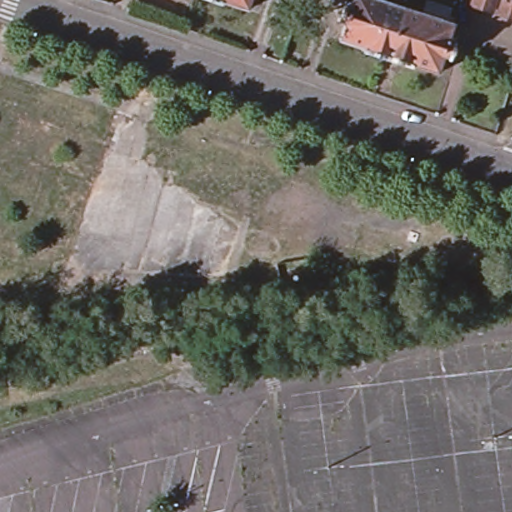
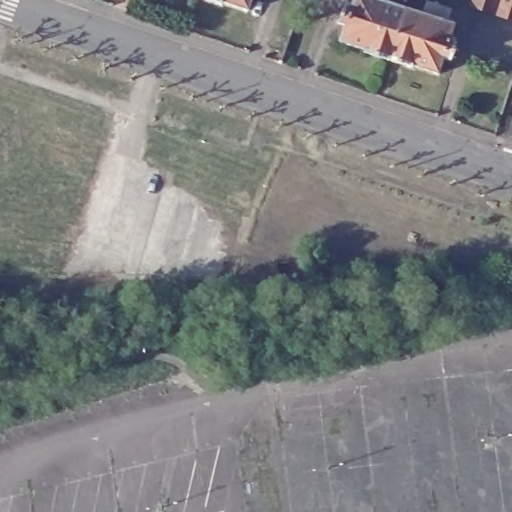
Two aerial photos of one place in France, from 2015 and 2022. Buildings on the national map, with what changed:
unchanged [(230,0),(252,0),(250,7),(230,0)]
unchanged [(368,40),(343,32),(348,15),(342,13),(346,0),(404,0),(407,1),(390,50),(367,43),(368,40)]
unchanged [(476,6),(478,0),(499,0),(495,13),(476,6)]
unchanged [(509,0),(512,0),(512,17),(505,14),(509,0)]
unchanged [(407,1),(455,18),(452,28),(460,30),(454,50),(446,49),(440,64),(415,56),(413,59),(390,50),(407,1)]

